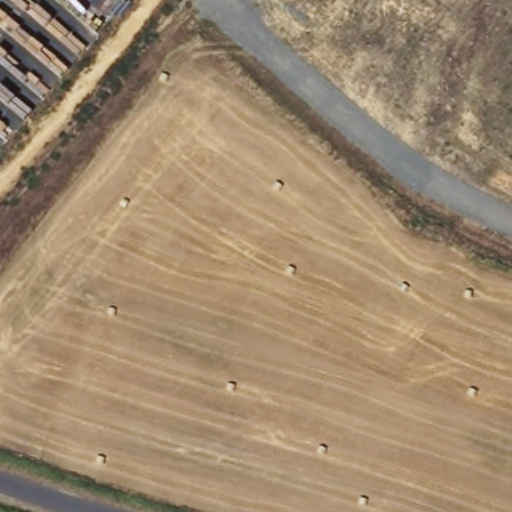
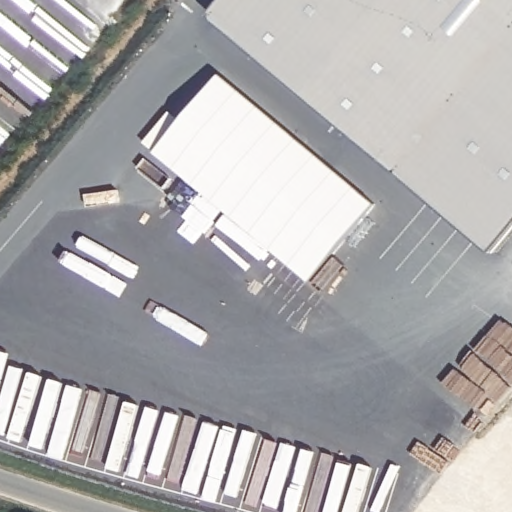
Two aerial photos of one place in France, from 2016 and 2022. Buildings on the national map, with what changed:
new [(512,222),(484,256),(202,19),(218,0),(512,0),(512,222)]

